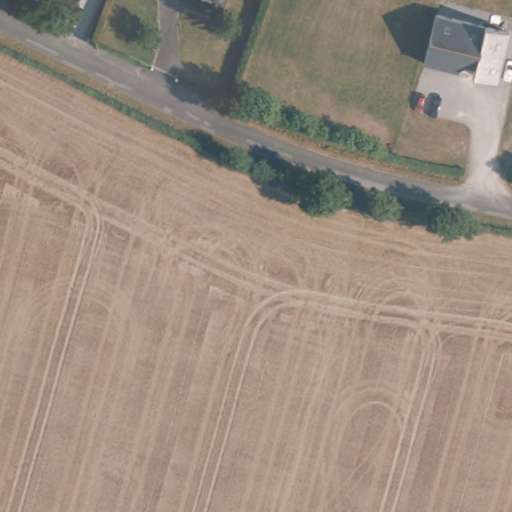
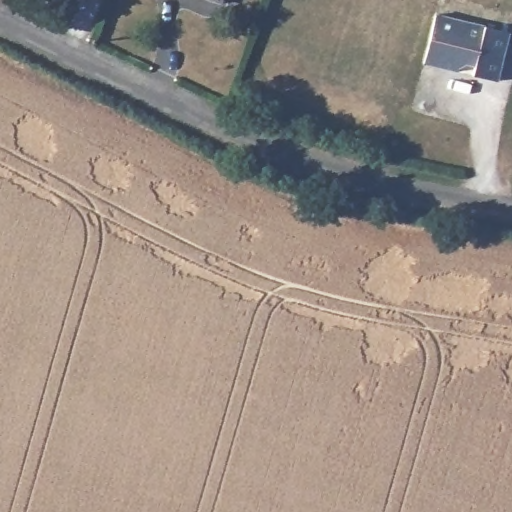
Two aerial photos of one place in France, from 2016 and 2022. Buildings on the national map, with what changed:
unchanged [(221,4),(209,0),(222,0),(221,4)]
unchanged [(510,40),(497,90),(473,84),(476,77),(466,74),(461,76),(458,80),(426,71),(437,24),(510,40)]

